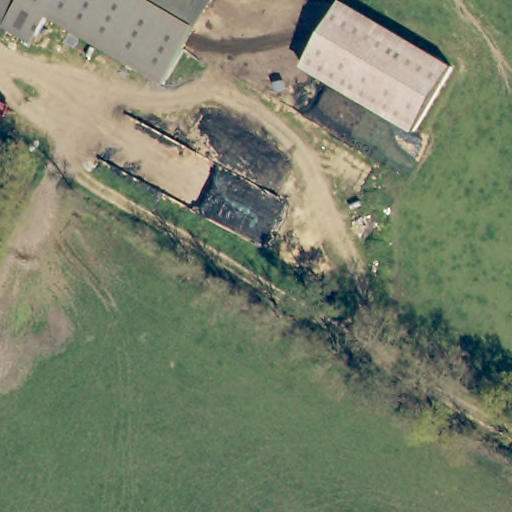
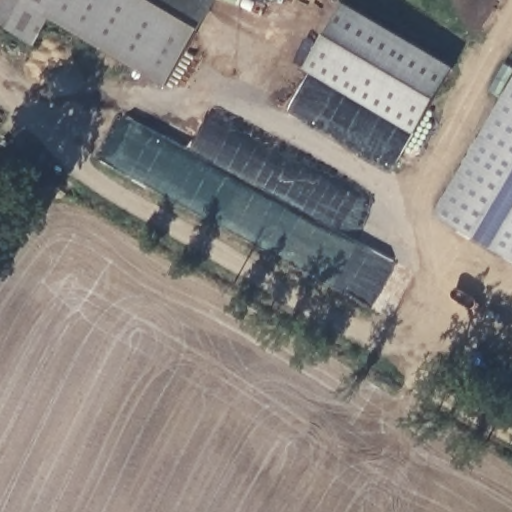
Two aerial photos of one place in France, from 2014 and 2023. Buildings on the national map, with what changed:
unchanged [(31,42),(0,23),(0,0),(54,0),(47,14),(31,42)]
unchanged [(152,0),(197,29),(163,86),(47,14),(54,0),(152,0)]
unchanged [(152,0),(214,0),(197,29),(152,0)]
unchanged [(409,132),(301,66),(340,2),(448,68),(409,132)]
new [(436,214),(504,96),(491,89),(507,63),(512,66),(512,258),(436,214)]

